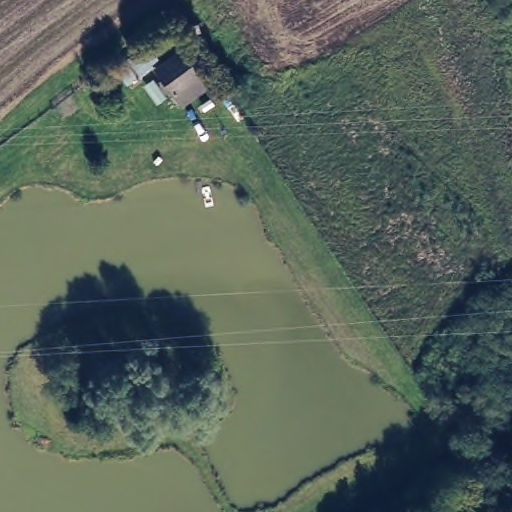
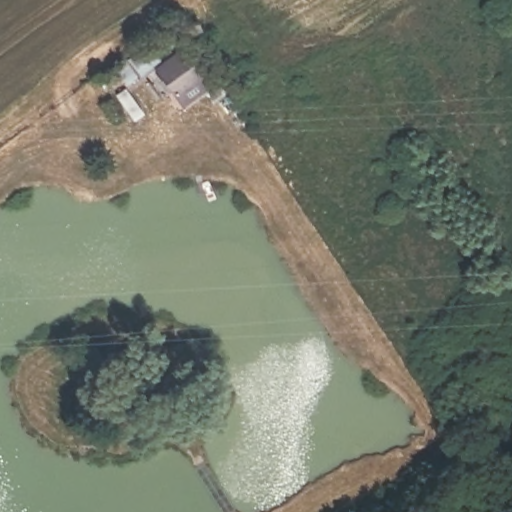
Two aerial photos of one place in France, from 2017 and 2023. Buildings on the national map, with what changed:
unchanged [(160,71),(131,86),(122,71),(159,46),(170,58),(192,45),(211,86),(182,106),(160,71)]

